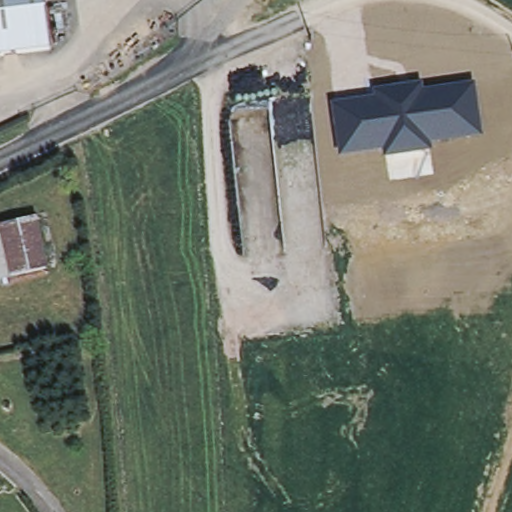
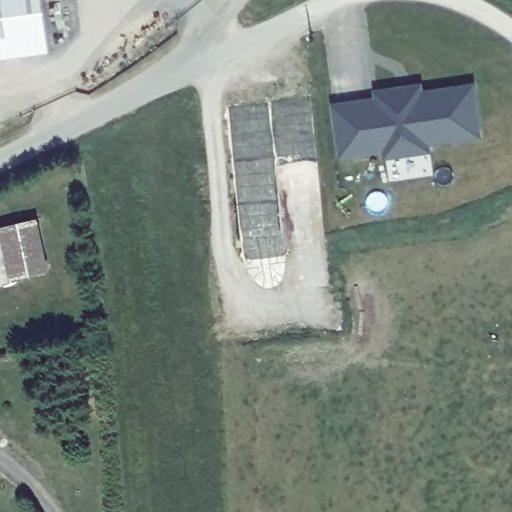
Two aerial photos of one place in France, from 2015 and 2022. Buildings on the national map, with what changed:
unchanged [(0,59),(0,0),(44,0),(50,52),(0,59)]
unchanged [(482,136),(432,144),(432,153),(387,157),(385,150),(345,156),(337,102),(378,96),(377,90),(420,83),(422,89),(473,81),(482,136)]
unchanged [(36,215),(48,265),(6,274),(0,246),(0,223),(36,215)]
unchanged [(6,274),(0,275),(0,246),(6,274)]

